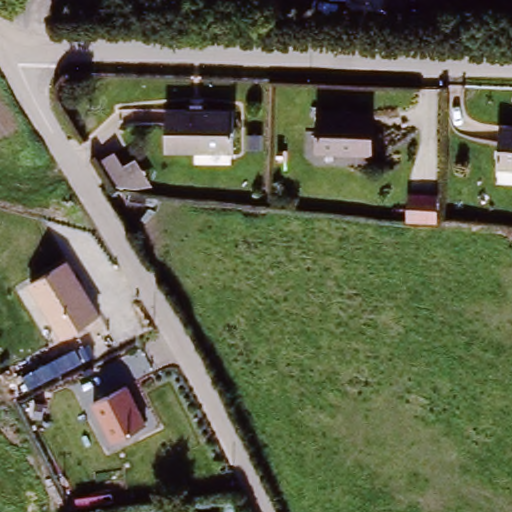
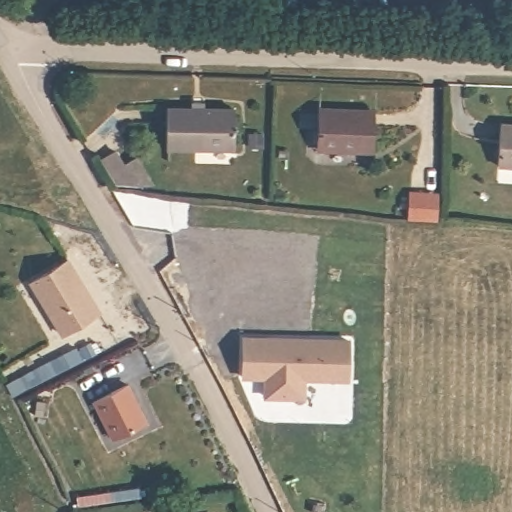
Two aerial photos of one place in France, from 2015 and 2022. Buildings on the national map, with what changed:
unchanged [(169,107),(238,112),(235,152),(166,148),(169,107)]
unchanged [(372,108),(372,152),(317,151),(318,107),(372,108)]
unchanged [(512,126),(512,165),(500,164),(499,125),(512,126)]
unchanged [(440,222),(407,220),(410,192),(441,194),(440,222)]
unchanged [(30,281),(70,257),(101,310),(63,333),(30,281)]
new [(350,382),(307,379),(306,398),(264,398),(264,379),(242,378),(242,334),(350,336),(350,382)]
unchanged [(110,441),(92,404),(127,387),(147,425),(110,441)]

